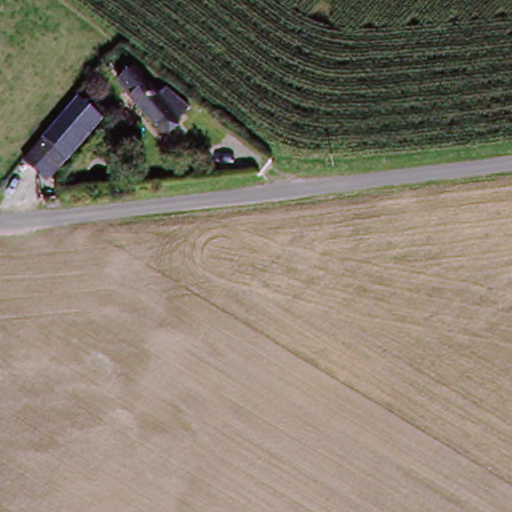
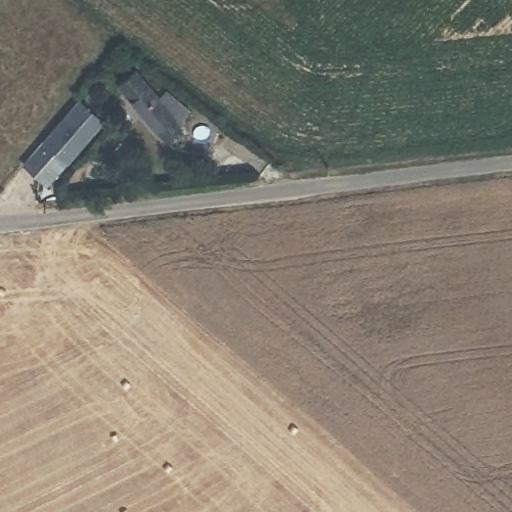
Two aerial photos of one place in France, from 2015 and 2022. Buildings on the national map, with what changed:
unchanged [(180,123),(164,137),(120,87),(136,74),(160,102),(169,94),(191,112),(180,123)]
unchanged [(70,155),(68,152),(57,165),(55,163),(48,170),(35,158),(80,102),(100,119),(70,155)]

